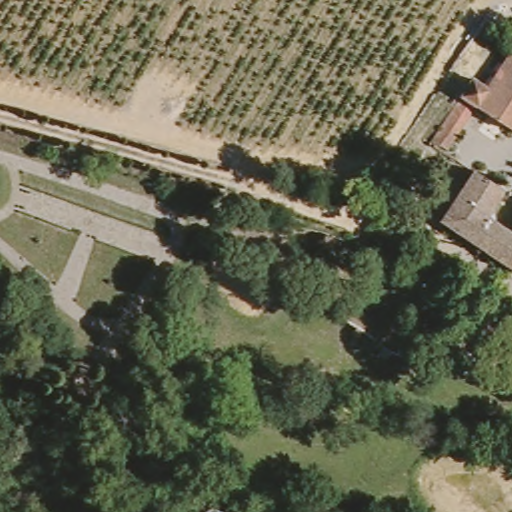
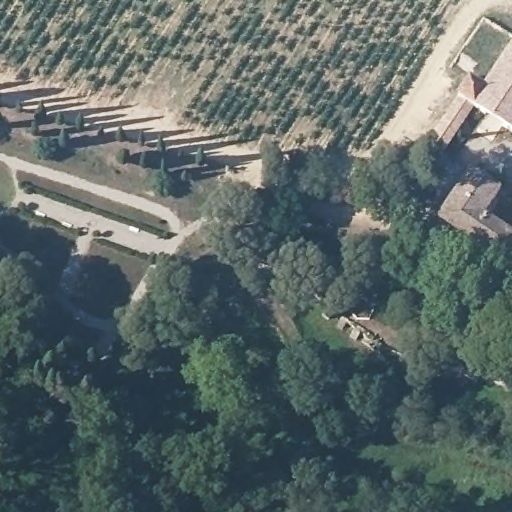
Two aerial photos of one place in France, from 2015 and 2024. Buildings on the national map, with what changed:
unchanged [(469,105),(440,148),(433,144),(430,147),(423,141),(469,75),(485,85),(512,47),(512,133),(511,135),(469,105)]
unchanged [(512,133),(512,135),(511,135),(512,133)]
unchanged [(437,217),(467,172),(494,190),(479,215),(512,239),(512,269),(437,217)]

